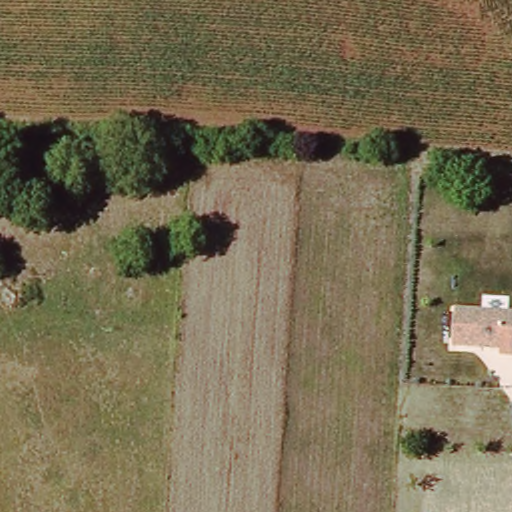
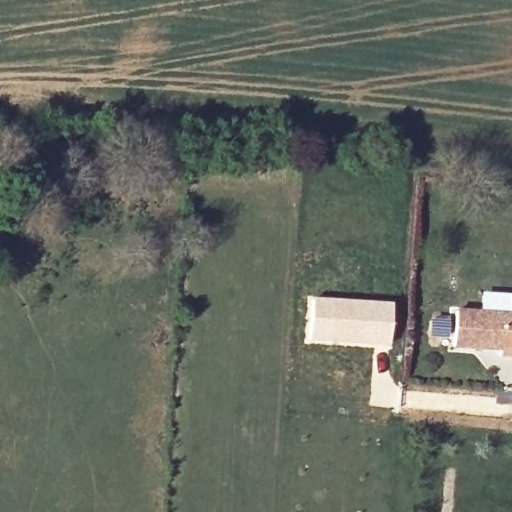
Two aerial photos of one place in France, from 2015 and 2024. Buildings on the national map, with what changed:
new [(310,297),(391,303),(390,349),(307,343),(310,297)]
unchanged [(451,347),(455,307),(512,312),(512,359),(497,357),(499,351),(451,347)]

